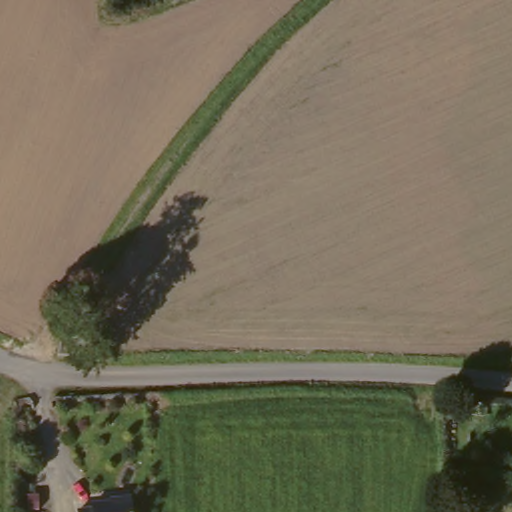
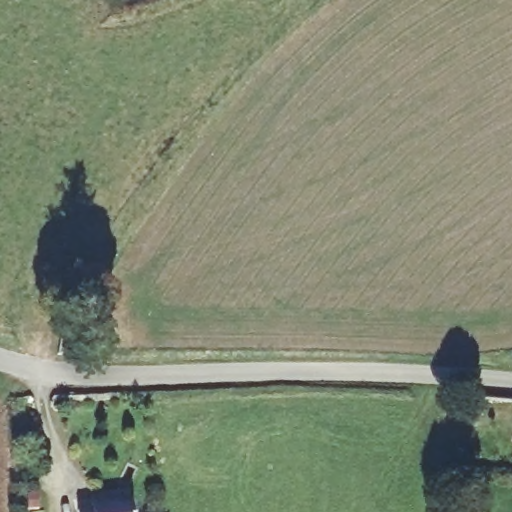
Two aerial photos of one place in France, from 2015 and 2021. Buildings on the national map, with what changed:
unchanged [(87,326),(86,343),(64,346),(64,328),(87,326)]
unchanged [(126,507),(126,512),(105,512),(105,507),(126,507)]

